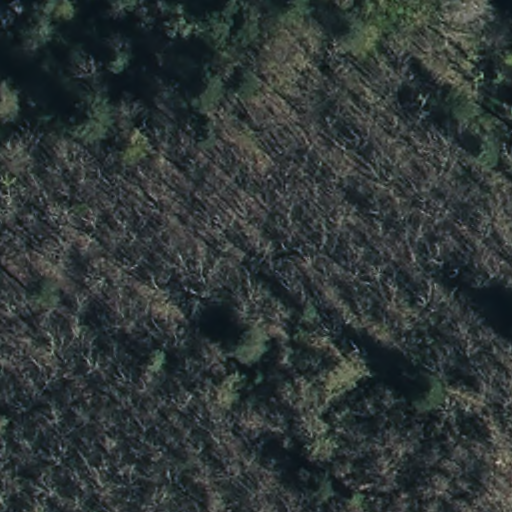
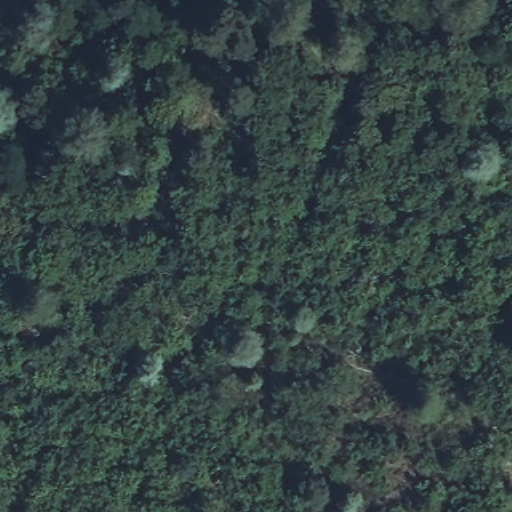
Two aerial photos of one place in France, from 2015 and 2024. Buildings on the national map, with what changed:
unchanged [(12,0),(32,0),(35,18),(0,28),(0,9),(13,5),(12,0)]

